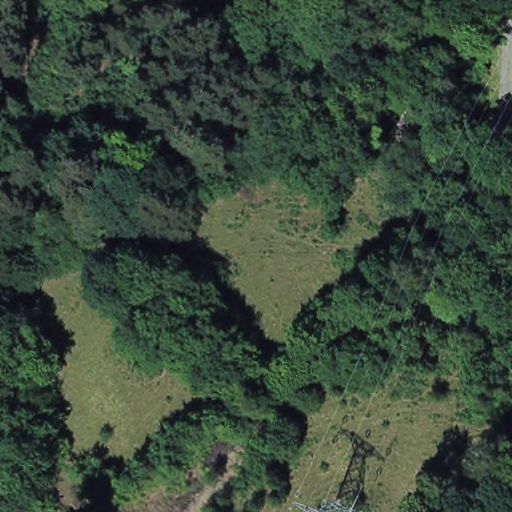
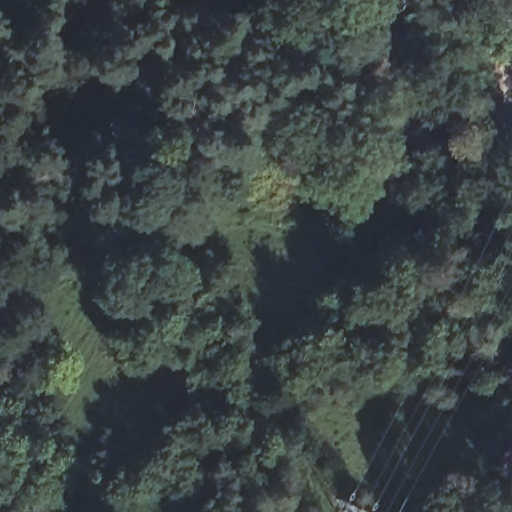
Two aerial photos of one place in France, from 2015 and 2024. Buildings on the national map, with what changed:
[]

